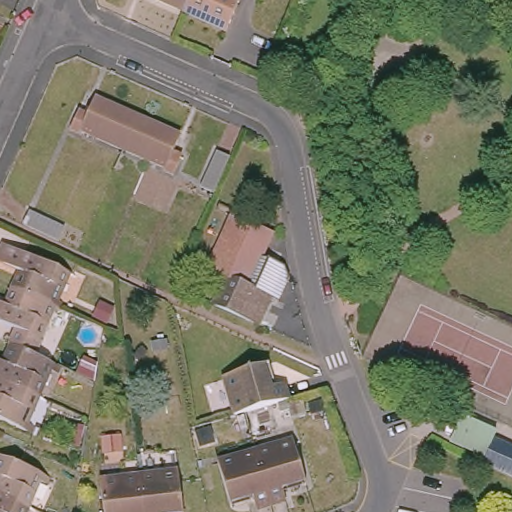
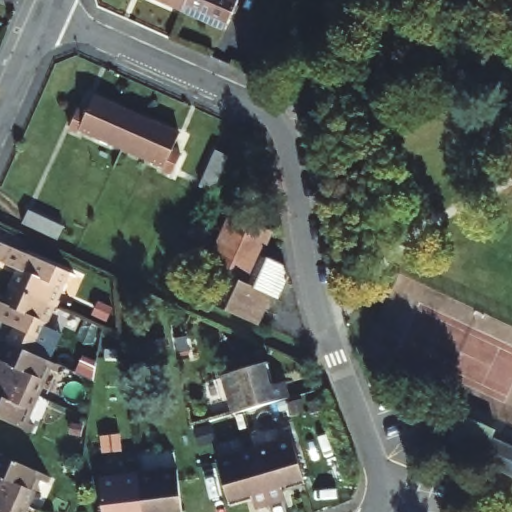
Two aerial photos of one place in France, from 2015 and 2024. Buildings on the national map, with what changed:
unchanged [(186,0),(183,7),(166,0),(186,0)]
unchanged [(237,0),(225,27),(183,7),(186,0),(237,0)]
unchanged [(395,42),(388,60),(370,53),(376,36),(395,42)]
unchanged [(123,144),(78,125),(77,128),(68,125),(75,106),(85,109),(95,92),(137,111),(123,144)]
unchanged [(137,111),(180,130),(172,149),(180,152),(173,170),(163,167),(165,162),(123,144),(137,111)]
unchanged [(229,156),(213,192),(200,187),(216,151),(229,156)]
unchanged [(62,228),(57,240),(21,223),(25,212),(62,228)]
unchanged [(271,232),(261,255),(284,265),(288,275),(278,299),(270,297),(259,323),(212,302),(224,275),(207,268),(232,215),(271,232)]
unchanged [(0,255),(0,240),(1,237),(68,266),(58,290),(68,295),(64,303),(15,282),(23,265),(0,255)]
unchanged [(4,335),(11,319),(0,314),(0,295),(8,298),(15,282),(64,303),(60,313),(50,309),(32,347),(15,340),(4,335)]
unchanged [(58,368),(48,365),(38,388),(0,371),(0,354),(7,357),(15,340),(32,347),(62,360),(58,368)]
unchanged [(276,389),(290,387),(293,402),(248,415),(240,417),(229,377),(270,367),(276,389)]
unchanged [(36,416),(32,426),(0,411),(0,371),(38,388),(27,412),(36,416)]
unchanged [(495,431),(492,439),(512,448),(512,476),(482,462),(485,457),(448,440),(460,415),(495,431)]
unchanged [(255,444),(293,433),(305,473),(282,480),(286,493),(270,498),(255,444)]
unchanged [(270,498),(256,502),(251,490),(228,497),(215,455),(255,444),(270,498)]
unchanged [(0,453),(45,472),(42,482),(32,478),(21,504),(0,495),(0,453)]
unchanged [(178,464),(183,506),(159,508),(159,512),(144,512),(139,468),(178,464)]
unchanged [(144,512),(128,512),(127,512),(122,512),(104,512),(100,472),(139,468),(144,512)]
unchanged [(18,512),(0,512),(0,495),(21,504),(18,512)]

